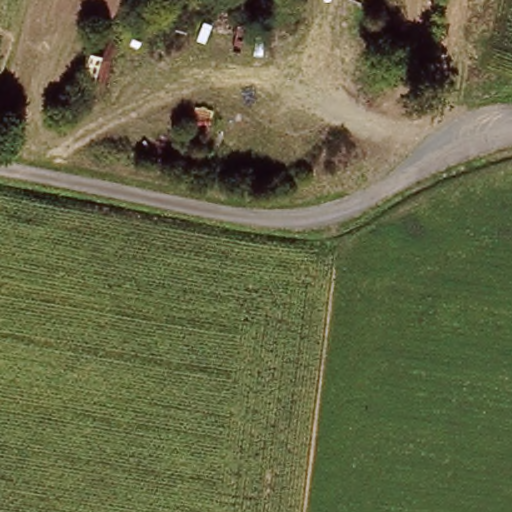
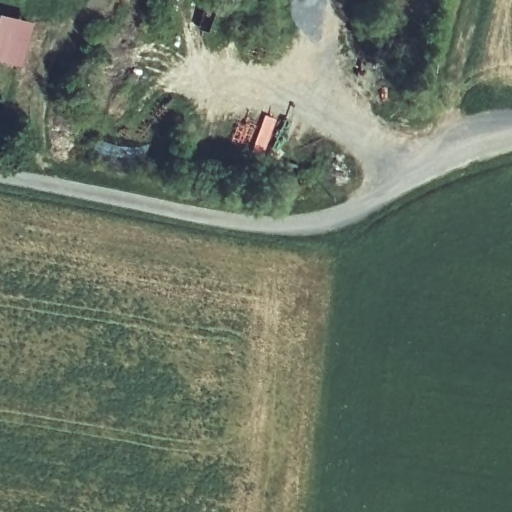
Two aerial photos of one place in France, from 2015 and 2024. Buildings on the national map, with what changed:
new [(20,68),(0,63),(0,14),(32,23),(20,68)]

